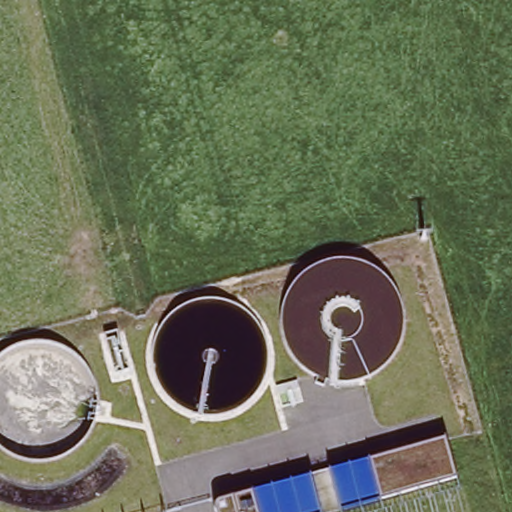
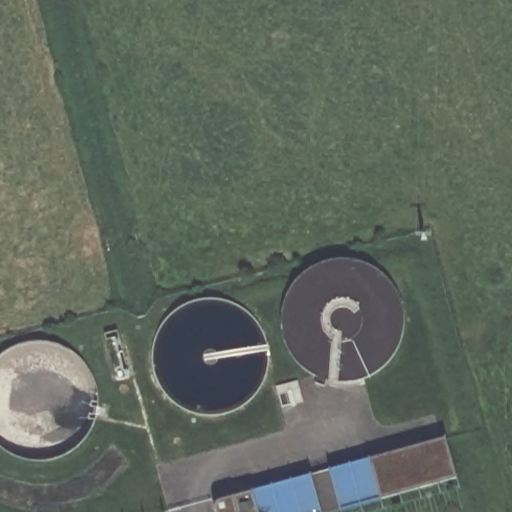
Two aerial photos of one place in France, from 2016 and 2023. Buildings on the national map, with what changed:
unchanged [(457,476),(338,507),(328,468),(446,435),(457,476)]
unchanged [(320,512),(218,512),(214,499),(310,472),(320,512)]

